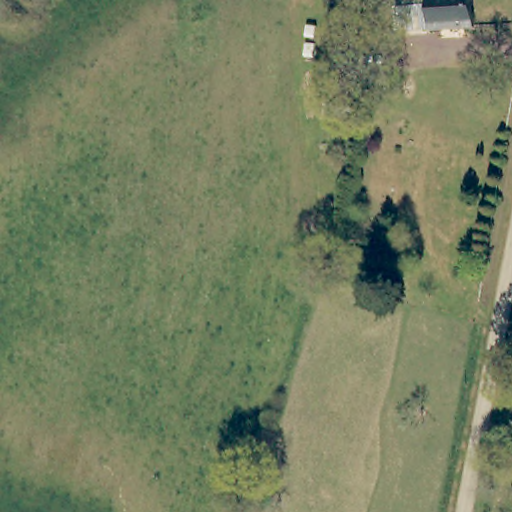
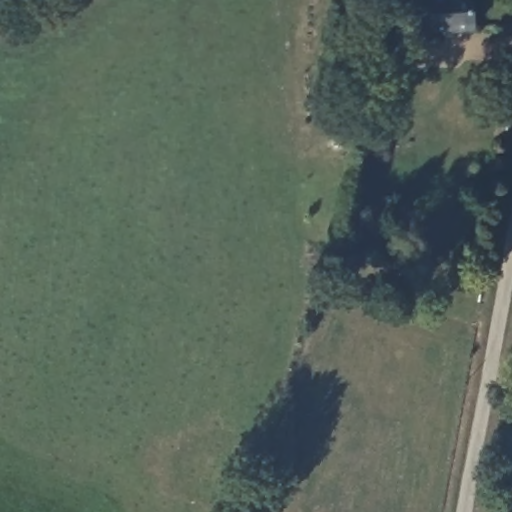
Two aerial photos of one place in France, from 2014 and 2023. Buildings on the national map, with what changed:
unchanged [(432,14),(398,18),(397,0),(474,0),(477,26),(434,31),(432,14)]

